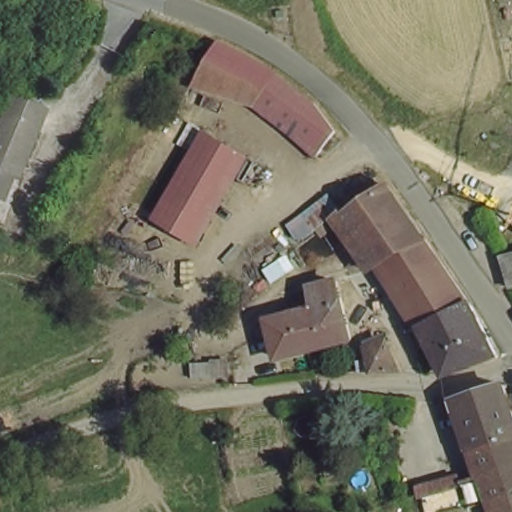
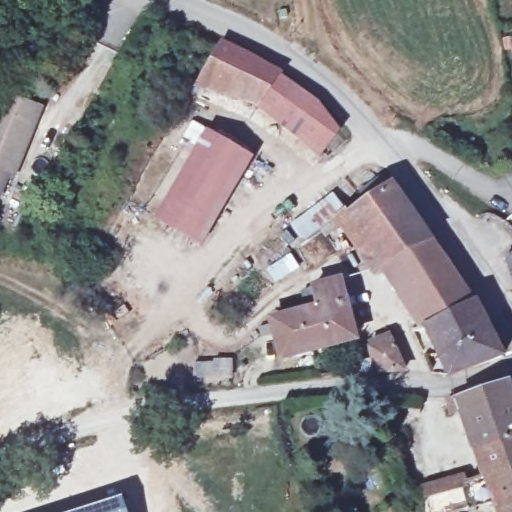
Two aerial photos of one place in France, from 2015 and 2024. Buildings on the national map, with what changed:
unchanged [(262,106),(201,81),(223,44),(298,82),(316,95),(294,126),(262,106)]
unchanged [(9,174),(0,197),(0,100),(3,92),(43,108),(15,176),(9,174)]
unchanged [(161,212),(203,147),(245,174),(206,239),(161,212)]
unchanged [(395,183),(404,195),(476,304),(428,326),(388,266),(351,210),(395,183)]
unchanged [(314,234),(302,212),(341,185),(351,205),(349,207),(336,216),(314,234)]
unchanged [(371,275),(336,216),(349,207),(351,210),(388,266),(371,275)]
unchanged [(502,258),(512,256),(512,290),(502,258)]
unchanged [(354,347),(280,365),(274,329),(319,318),(314,297),(341,290),(354,347)]
unchanged [(476,304),(508,353),(492,367),(458,378),(452,377),(428,326),(476,304)]
unchanged [(389,368),(374,368),(366,343),(394,336),(406,367),(389,368)]
unchanged [(512,400),(512,512),(501,512),(494,497),(455,512),(434,512),(433,509),(427,498),(458,484),(456,481),(486,472),(460,410),(445,416),(440,400),(458,394),(461,403),(507,385),(512,400)]
new [(128,512),(68,512),(123,495),(128,512)]

